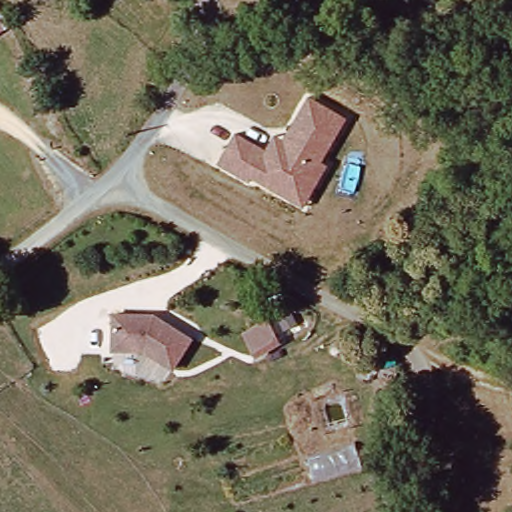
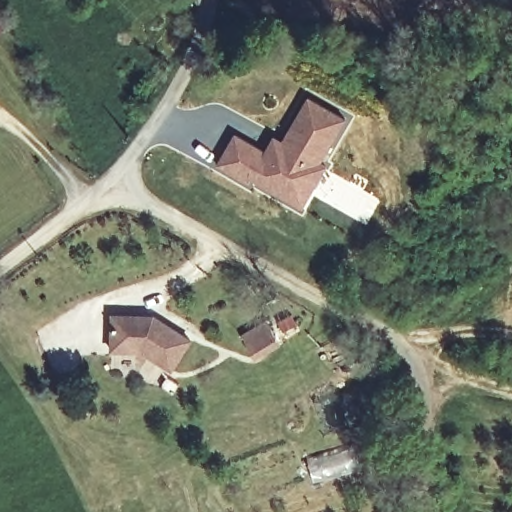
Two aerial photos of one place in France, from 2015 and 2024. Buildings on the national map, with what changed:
unchanged [(345,120),(320,162),(328,167),(303,209),(251,179),(249,185),(215,166),(235,133),(264,150),(273,134),(283,140),(307,98),(345,120)]
unchanged [(245,310),(217,307),(220,282),(247,285),(245,310)]
unchanged [(157,314),(196,332),(180,367),(148,353),(115,356),(112,317),(157,314)]

